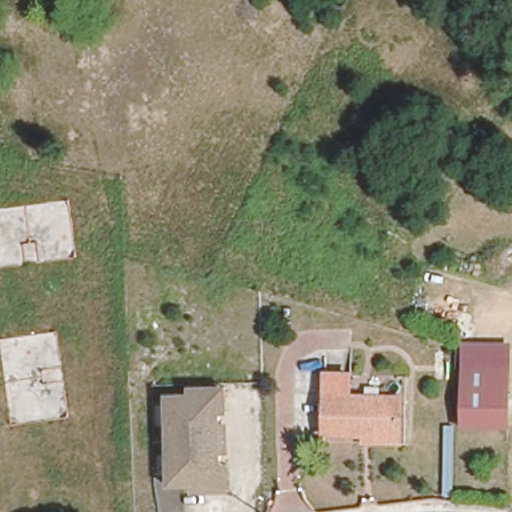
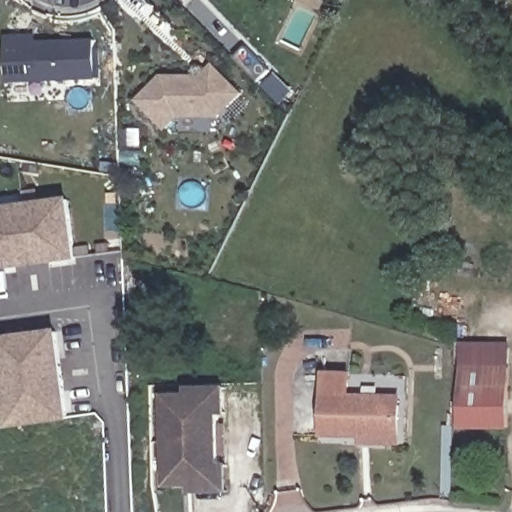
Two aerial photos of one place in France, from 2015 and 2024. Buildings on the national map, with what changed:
new [(5,81),(4,38),(21,37),(22,44),(94,41),(96,78),(5,81)]
new [(217,117),(177,116),(166,128),(137,100),(162,75),(200,76),(212,64),(240,92),(217,117)]
new [(0,206),(70,197),(78,260),(0,271),(0,206)]
new [(8,429),(0,373),(0,336),(58,329),(70,420),(8,429)]
new [(484,368),(459,368),(459,343),(509,344),(509,369),(484,368)]
unchanged [(506,427),(457,425),(459,368),(484,368),(509,369),(508,385),(506,427)]
new [(360,445),(360,438),(320,437),(321,371),(352,372),(351,393),(402,395),(400,446),(360,445)]
unchanged [(185,392),(184,386),(229,386),(229,418),(218,419),(220,466),(234,466),(234,495),(189,496),(189,487),(165,488),(161,393),(185,392)]
demolished [(398,450),(325,448),(326,409),(399,412),(398,450)]

